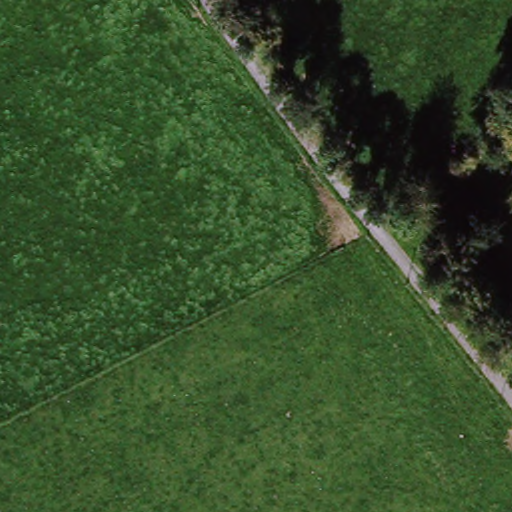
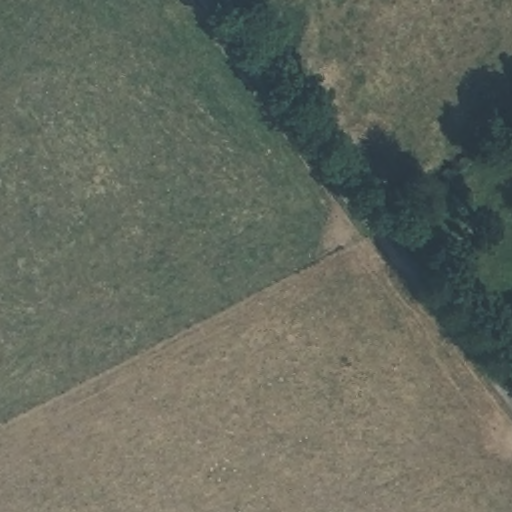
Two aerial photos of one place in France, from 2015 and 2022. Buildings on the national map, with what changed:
[]

